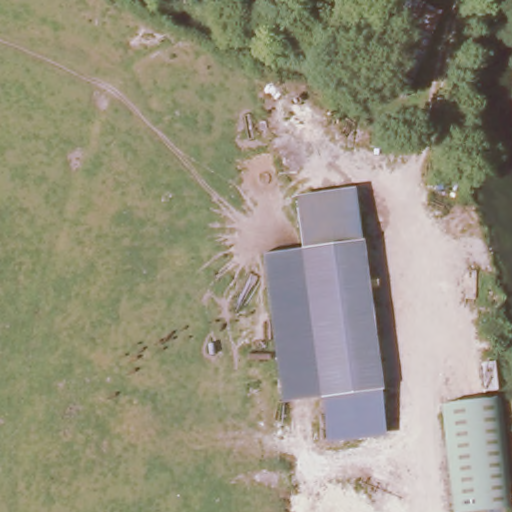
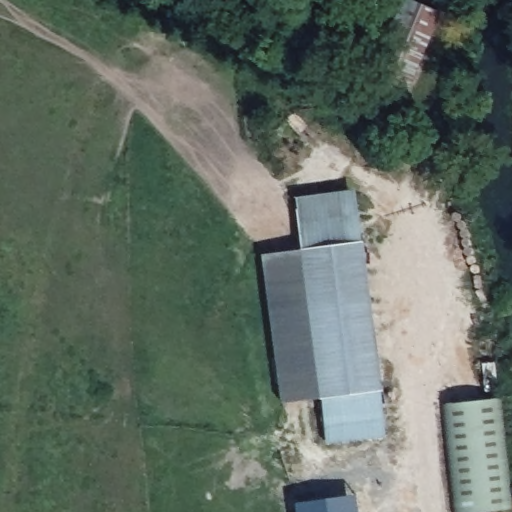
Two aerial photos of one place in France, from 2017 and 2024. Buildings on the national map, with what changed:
unchanged [(441,14),(394,121),(358,105),(382,50),(404,0),(411,0),(441,14)]
unchanged [(356,189),(389,434),(328,443),(321,397),(284,400),(265,255),(303,251),(296,199),(356,189)]
unchanged [(446,512),(433,402),(483,395),(494,394),(506,504),(503,505),(446,512)]
new [(356,495),(359,512),(297,512),(296,502),(356,495)]

